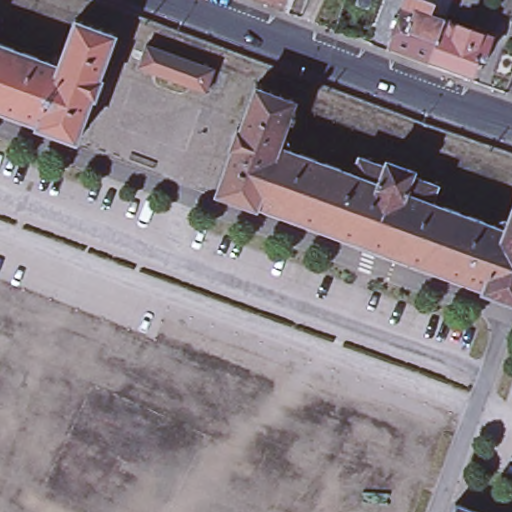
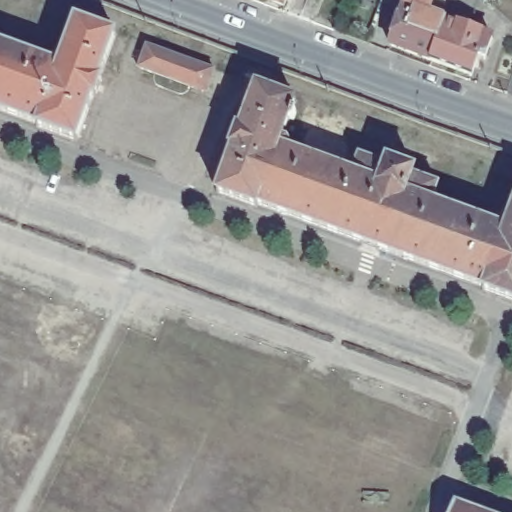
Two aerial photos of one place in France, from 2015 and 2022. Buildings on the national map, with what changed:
unchanged [(286,0),(285,3),(277,0),(286,0)]
unchanged [(472,75),(433,60),(391,44),(404,1),(405,0),(478,0),(472,20),(449,11),(447,17),(492,35),(484,57),(479,55),(472,75)]
unchanged [(73,144),(33,129),(35,125),(0,113),(0,46),(47,64),(48,62),(49,61),(50,60),(51,59),(53,58),(55,57),(57,57),(59,58),(72,21),(113,36),(97,80),(99,80),(93,100),(90,98),(73,144)]
unchanged [(206,94),(139,70),(148,46),(215,71),(206,94)]
unchanged [(496,222),(498,221),(499,220),(503,220),(506,220),(512,202),(512,304),(479,291),(481,288),(255,207),(254,209),(214,194),(230,150),(228,150),(234,130),(236,130),(252,87),(291,102),(279,138),(281,140),(283,140),(284,142),(284,144),(285,145),(285,148),(284,150),(351,174),(356,157),(381,166),(384,160),(412,170),(409,177),(434,186),(429,203),(493,226),(494,225),(496,222)]
unchanged [(463,505),(484,512),(460,512),(463,505)]

